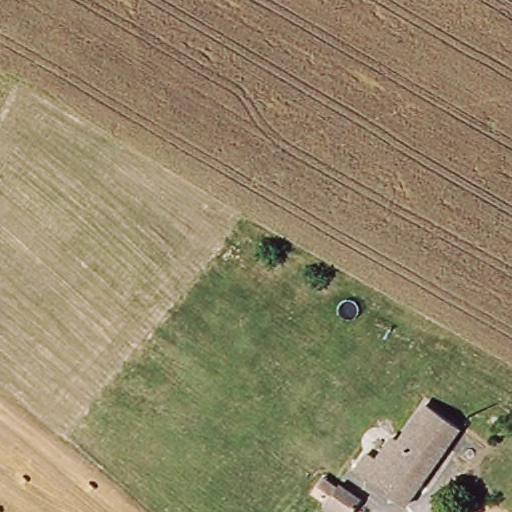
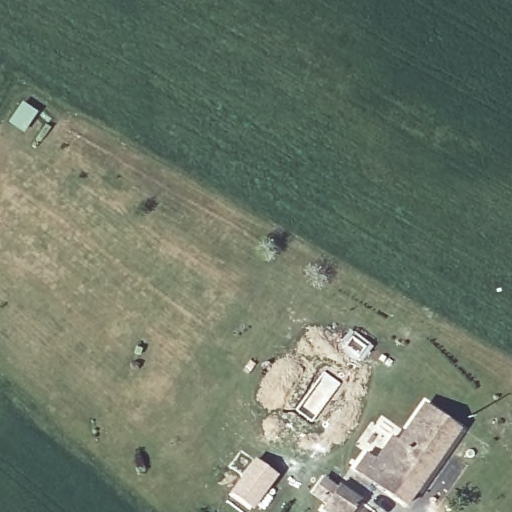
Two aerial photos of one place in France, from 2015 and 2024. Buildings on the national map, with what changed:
unchanged [(398,501),(358,471),(369,452),(378,460),(392,439),(399,443),(427,406),(462,431),(419,491),(407,507),(398,501)]
new [(255,457),(278,474),(251,510),(228,492),(255,457)]
unchanged [(362,501),(355,512),(335,512),(324,504),(341,485),(362,501)]

